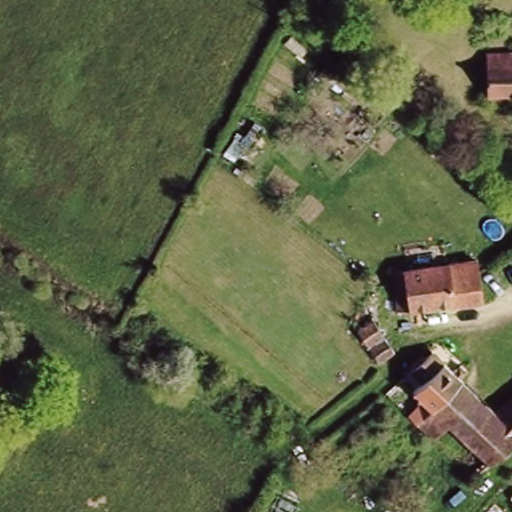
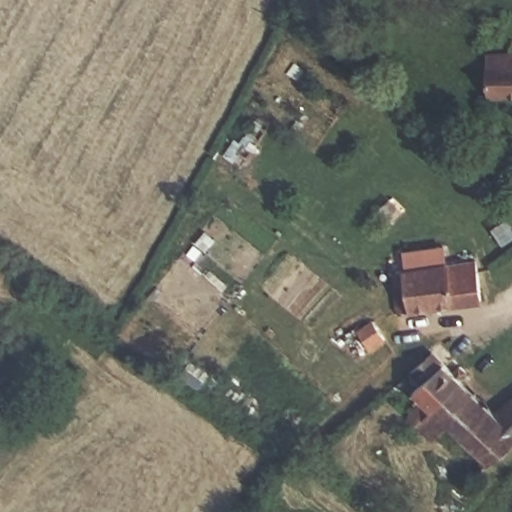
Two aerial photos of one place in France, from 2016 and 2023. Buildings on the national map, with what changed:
unchanged [(492,89),(493,52),(512,53),(512,90),(492,89)]
unchanged [(476,258),(483,301),(397,319),(392,273),(476,258)]
unchanged [(361,336),(385,313),(415,350),(392,368),(361,336)]
unchanged [(443,362),(485,398),(442,447),(441,446),(403,409),(443,362)]
unchanged [(505,414),(512,407),(512,454),(478,482),(442,447),(485,398),(505,414)]

